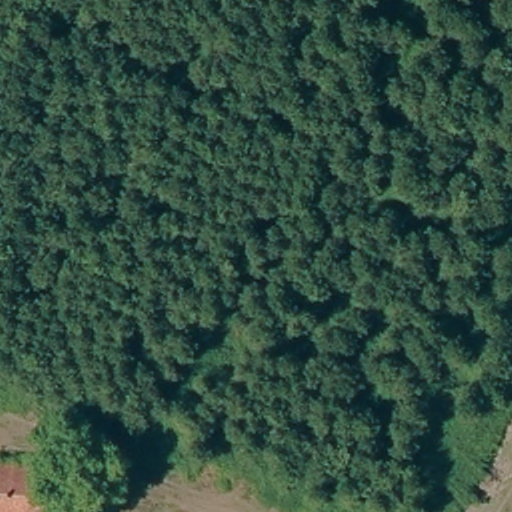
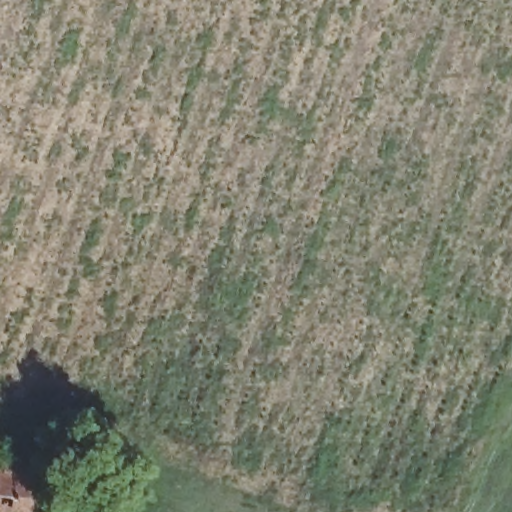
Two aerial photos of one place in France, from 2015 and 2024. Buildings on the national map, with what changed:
unchanged [(44,512),(0,512),(0,473),(1,468),(53,477),(47,501),(44,512)]

